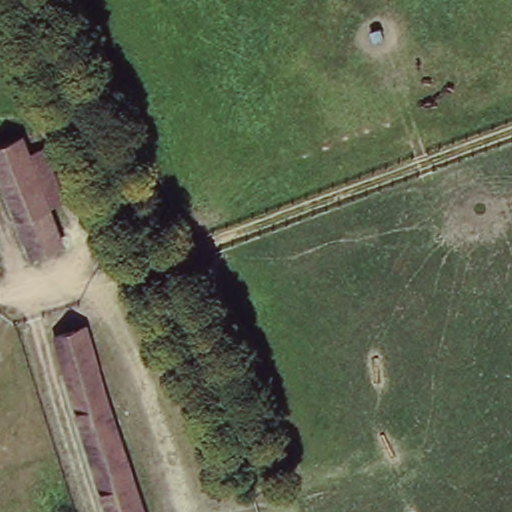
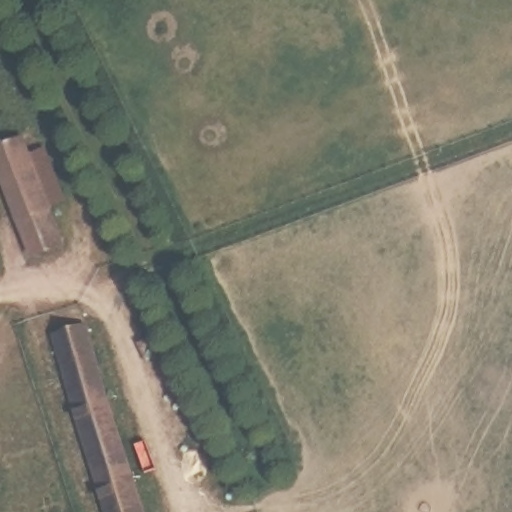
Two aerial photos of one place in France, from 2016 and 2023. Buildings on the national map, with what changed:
unchanged [(36,127),(63,192),(43,201),(18,135),(36,127)]
unchanged [(18,135),(43,201),(59,243),(26,255),(0,182),(0,141),(18,135)]
unchanged [(55,330),(91,320),(100,357),(64,366),(55,330)]
unchanged [(64,366),(100,357),(121,433),(83,442),(64,366)]
unchanged [(83,442),(121,433),(143,512),(106,512),(85,447),(83,442)]

